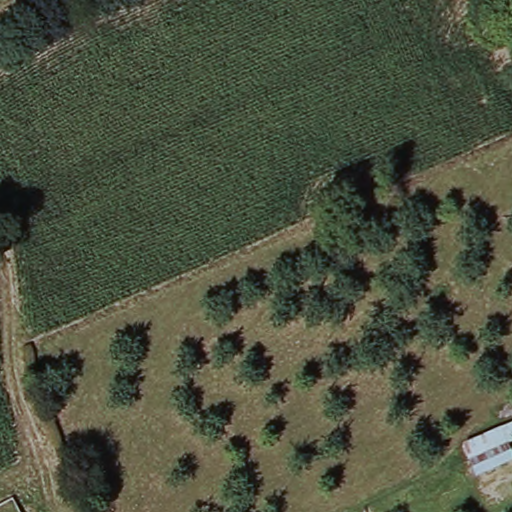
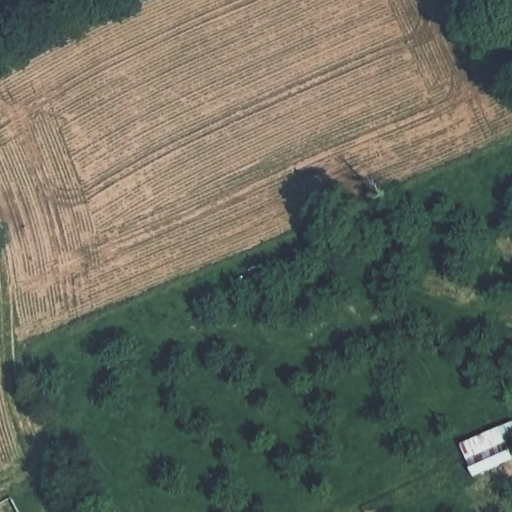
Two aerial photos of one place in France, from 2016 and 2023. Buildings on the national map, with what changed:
unchanged [(512,469),(482,483),(460,446),(505,428),(512,444),(512,469)]

